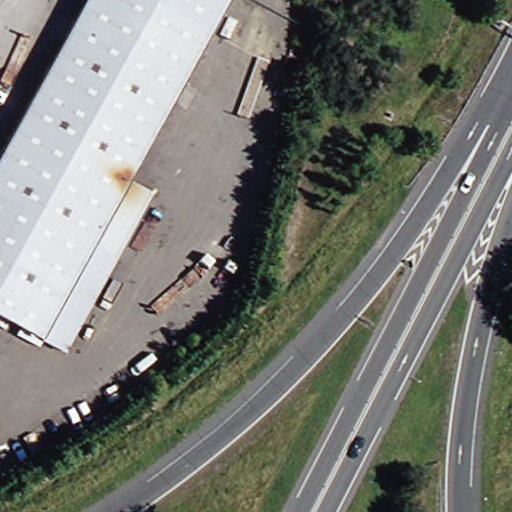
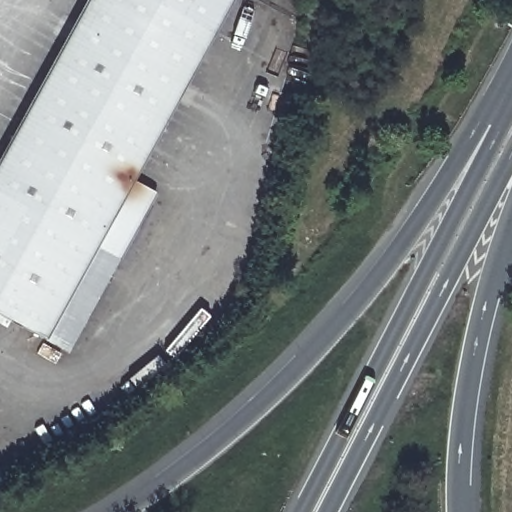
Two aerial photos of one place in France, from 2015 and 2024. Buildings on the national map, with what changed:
unchanged [(158,124),(49,65),(83,0),(225,0),(158,124)]
unchanged [(131,175),(157,189),(121,257),(95,244),(91,251),(0,202),(0,158),(49,65),(158,124),(131,175)]
unchanged [(47,336),(0,310),(0,202),(91,251),(47,336)]

